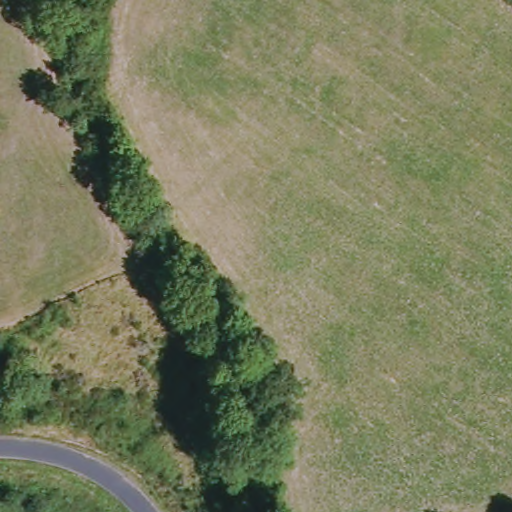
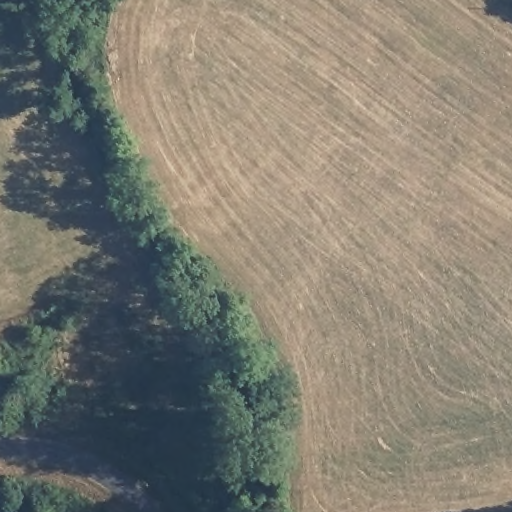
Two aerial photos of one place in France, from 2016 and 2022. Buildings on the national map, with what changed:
[]

